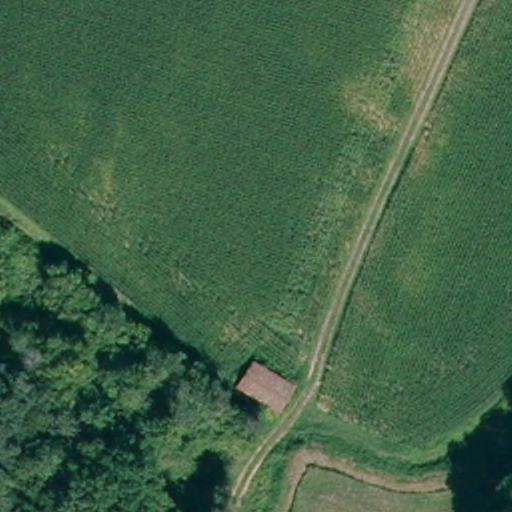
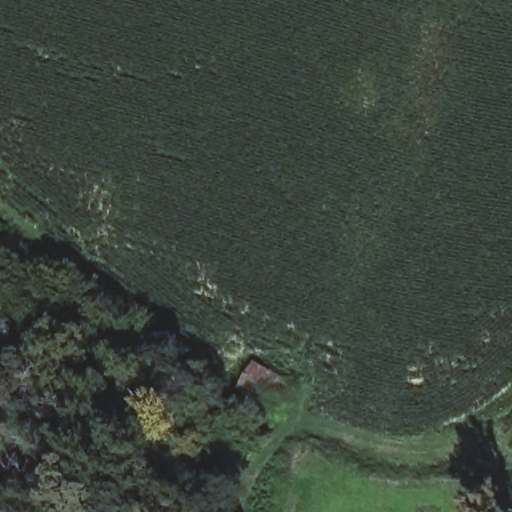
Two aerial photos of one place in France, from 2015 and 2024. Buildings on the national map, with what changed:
unchanged [(287,392),(275,412),(239,392),(251,371),(287,392)]

